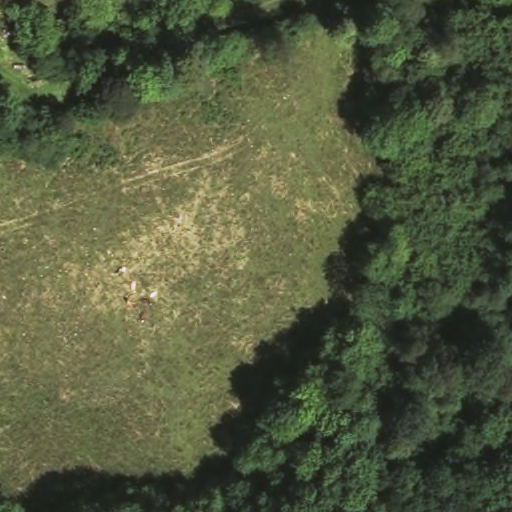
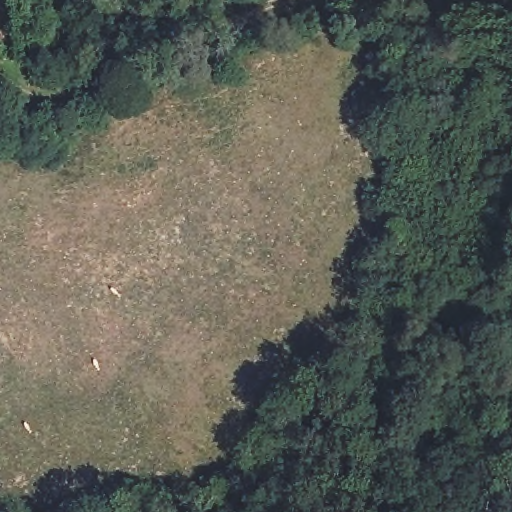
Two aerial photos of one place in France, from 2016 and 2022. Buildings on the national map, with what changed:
[]

